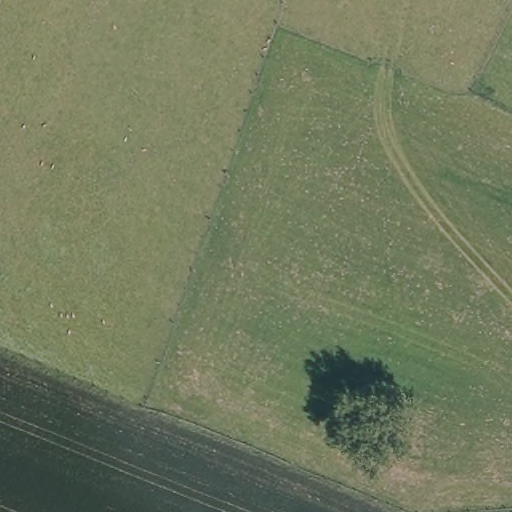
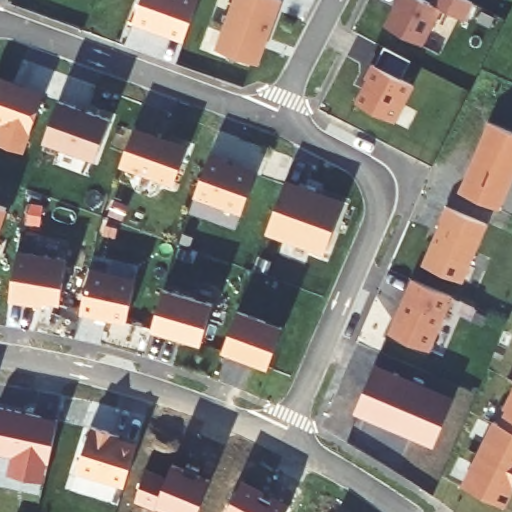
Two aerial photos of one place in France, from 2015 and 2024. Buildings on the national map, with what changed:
new [(143,0),(200,0),(185,40),(135,21),(143,0)]
new [(282,0),(268,38),(263,35),(253,62),(217,49),(235,0),(282,0)]
new [(430,0),(470,0),(474,2),(463,22),(441,10),(423,46),(385,25),(397,0),(424,0),(429,2),(430,0)]
new [(411,59),(401,77),(416,85),(397,122),(355,101),(367,78),(364,76),(371,62),(377,65),(386,47),(411,59)]
new [(0,145),(0,126),(1,122),(0,122),(0,76),(44,92),(24,153),(0,145)]
new [(77,107),(77,108),(89,112),(90,110),(111,119),(96,160),(45,141),(60,100),(77,107)]
new [(512,131),(512,184),(502,209),(459,191),(490,121),(512,131)]
new [(188,147),(174,185),(121,166),(135,128),(188,147)]
new [(225,160),(225,162),(257,173),(242,214),(195,196),(210,154),(225,160)]
new [(345,202),(325,254),(267,233),(285,181),(345,202)]
new [(462,281),(420,264),(445,205),(490,224),(462,281)]
new [(0,206),(8,209),(0,232),(0,206)]
new [(18,251),(67,259),(61,303),(29,298),(28,303),(10,300),(18,251)]
new [(91,270),(136,280),(127,322),(109,318),(109,320),(95,317),(95,315),(82,312),(91,270)]
new [(430,351),(386,333),(410,278),(455,296),(430,351)]
new [(202,344),(151,328),(162,288),(213,302),(202,344)]
new [(282,327),(268,369),(221,353),(237,309),(282,327)]
new [(435,447),(355,414),(376,363),(455,396),(435,447)]
new [(506,509),(461,487),(495,418),(498,419),(512,390),(512,496),(506,509)]
new [(7,474),(12,454),(0,452),(0,406),(58,418),(43,481),(7,474)]
new [(139,442),(125,488),(78,472),(93,426),(139,442)]
new [(166,476),(172,462),(213,481),(200,512),(175,512),(158,505),(135,500),(147,467),(166,476)]
new [(286,512),(228,512),(246,480),(290,503),(286,512)]

